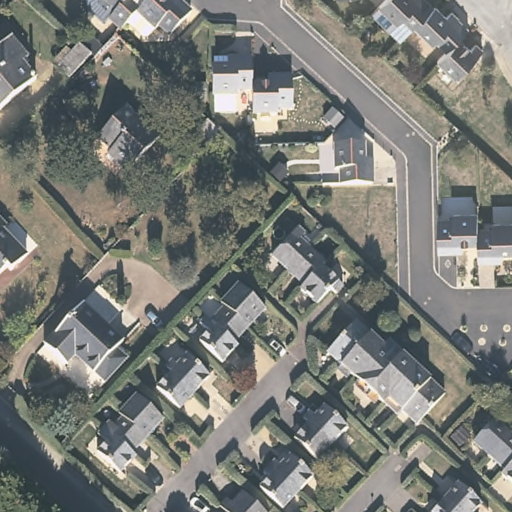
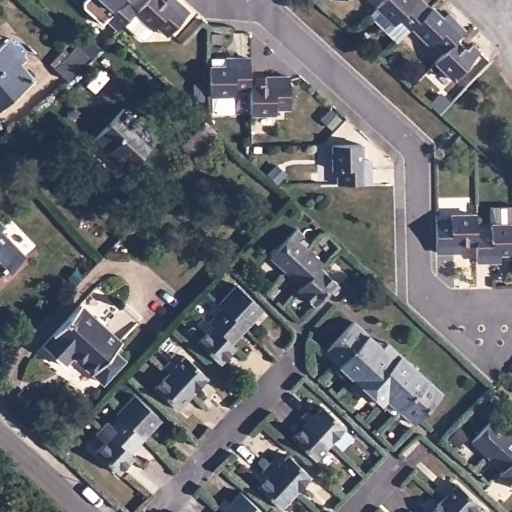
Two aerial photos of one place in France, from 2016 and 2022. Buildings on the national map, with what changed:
unchanged [(193,11),(174,32),(162,23),(152,34),(148,34),(145,34),(132,22),(124,28),(112,15),(110,18),(90,0),(138,0),(144,6),(150,0),(186,0),(196,9),(193,11)]
unchanged [(428,13),(430,11),(440,21),(445,16),(463,33),(453,43),(466,53),(471,49),(477,55),(449,84),(431,66),(441,56),(430,46),(426,50),(408,32),(406,35),(396,24),(392,28),(373,11),(385,0),(415,0),(428,13)]
unchanged [(92,54),(69,78),(57,67),(80,43),(92,54)]
unchanged [(36,79),(0,108),(0,55),(9,48),(36,79)]
unchanged [(271,107),(271,111),(247,112),(247,87),(231,88),(231,93),(227,93),(227,111),(209,111),(209,93),(207,93),(207,64),(208,64),(208,56),(230,55),(247,55),(247,59),(247,82),(262,82),(262,74),(270,74),(286,73),(286,77),(287,105),(271,107)]
unchanged [(154,142),(122,176),(102,159),(106,154),(92,141),(119,111),(154,142)]
unchanged [(218,130),(195,155),(183,145),(207,120),(218,130)]
unchanged [(368,182),(338,182),(338,167),(333,167),(332,142),(362,141),(363,156),(371,156),(371,165),(372,182),(368,182)]
unchanged [(500,254),(494,254),(477,254),(477,250),(476,237),(461,238),(461,245),(452,245),(437,245),(437,241),(437,213),(450,213),(450,208),(477,208),(477,222),(491,222),(491,218),(512,217),(512,246),(501,247),(500,254)]
unchanged [(7,230),(3,234),(27,258),(12,275),(7,271),(0,277),(0,223),(7,230)]
unchanged [(306,234),(301,239),(326,262),(322,266),(345,286),(337,294),(331,289),(316,304),(300,288),(302,285),(270,255),(297,227),(306,234)]
unchanged [(265,314),(235,346),(239,350),(222,367),(197,346),(207,336),(199,327),(205,321),(210,325),(224,311),(220,307),(238,287),(265,314)]
unchanged [(122,340),(115,348),(126,358),(105,381),(75,353),(65,363),(44,343),(82,303),(122,340)]
unchanged [(370,334),(366,338),(378,349),(376,352),(395,369),(405,357),(443,392),(417,423),(388,399),(383,404),(326,352),(354,320),(370,334)]
unchanged [(210,375),(179,408),(155,387),(170,371),(164,366),(172,358),(178,363),(186,354),(210,375)]
unchanged [(163,419),(132,452),(137,456),(120,473),(97,452),(107,442),(97,433),(109,420),(113,425),(122,416),(118,412),(136,393),(163,419)]
unchanged [(347,427),(316,459),(293,438),(307,422),(302,416),(307,411),(313,416),(324,405),(347,427)]
unchanged [(512,484),(500,473),(503,468),(472,439),(493,416),(512,433),(512,484)]
unchanged [(313,475),(283,507),(260,486),(269,476),(263,471),(275,459),(281,463),(289,454),(313,475)]
unchanged [(473,510),(475,512),(430,512),(458,482),(481,502),(473,510)]
unchanged [(227,512),(225,510),(242,491),(265,512),(227,512)]

